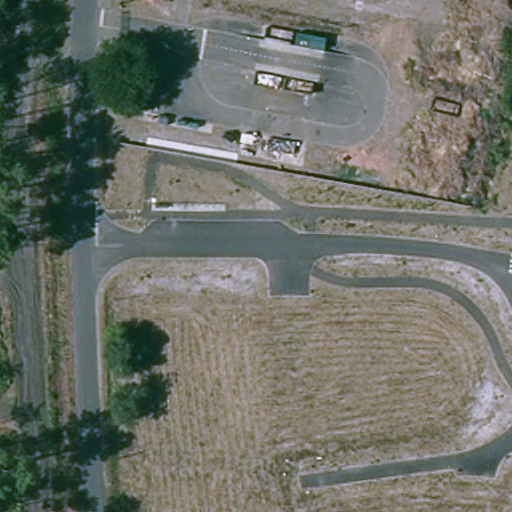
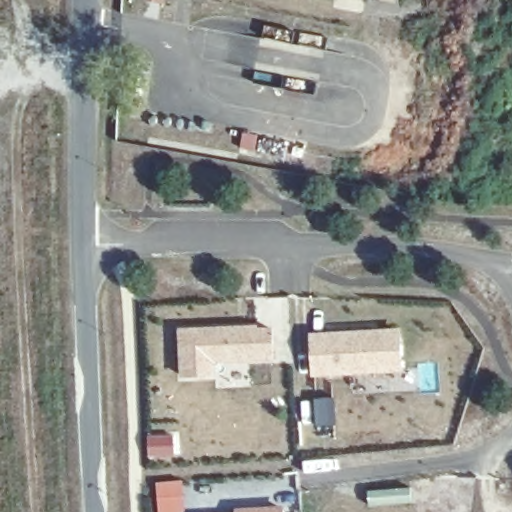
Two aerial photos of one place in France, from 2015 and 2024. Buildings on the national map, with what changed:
unchanged [(151,0),(164,0),(164,3),(151,0)]
new [(258,324),(258,328),(273,327),(275,360),(215,362),(216,377),(181,378),(179,328),(258,324)]
new [(400,327),(403,370),(311,377),(309,333),(400,327)]
new [(285,506),(285,512),(235,512),(235,508),(285,506)]

